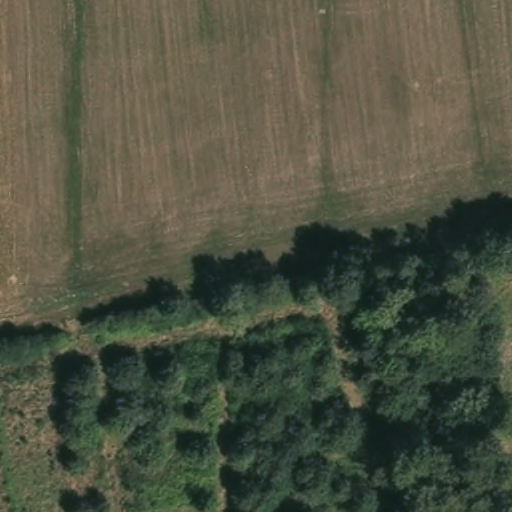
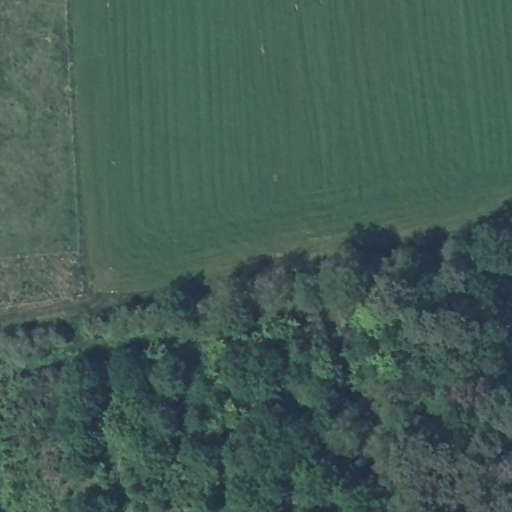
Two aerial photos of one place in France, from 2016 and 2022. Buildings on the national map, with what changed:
[]

